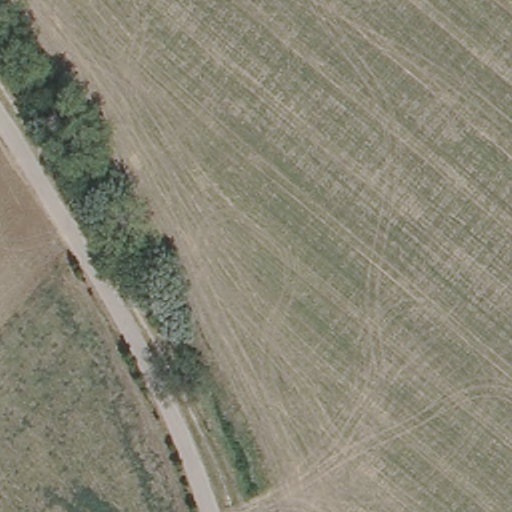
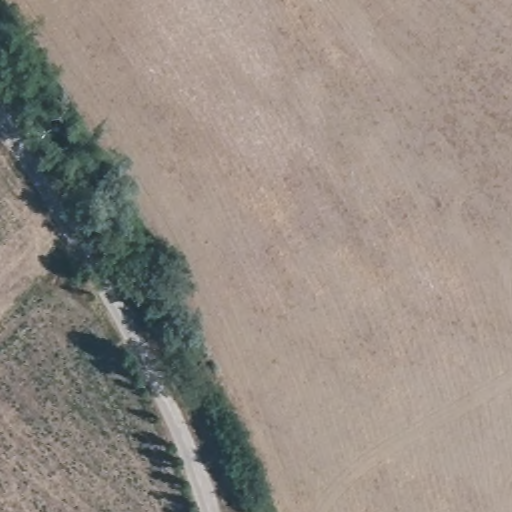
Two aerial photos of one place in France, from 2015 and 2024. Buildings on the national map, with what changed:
[]

